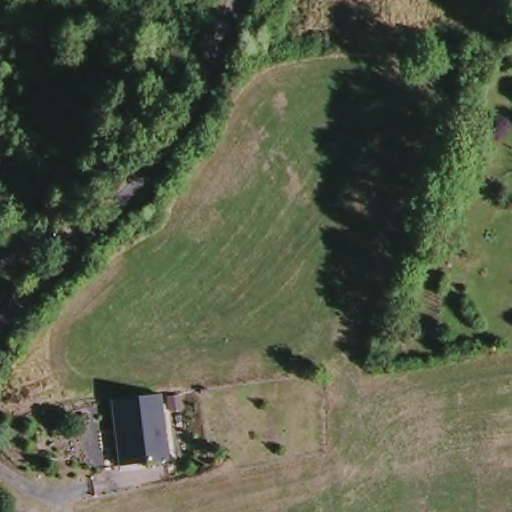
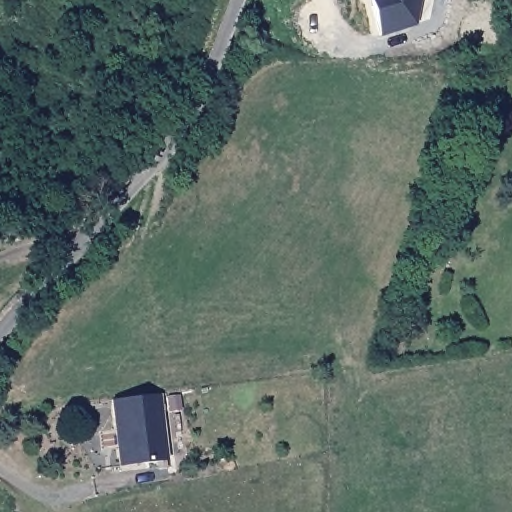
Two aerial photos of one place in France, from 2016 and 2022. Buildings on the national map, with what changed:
new [(381,37),(369,0),(422,0),(417,25),(381,37)]
unchanged [(120,427),(119,407),(167,401),(175,467),(134,471),(125,472),(120,427)]

